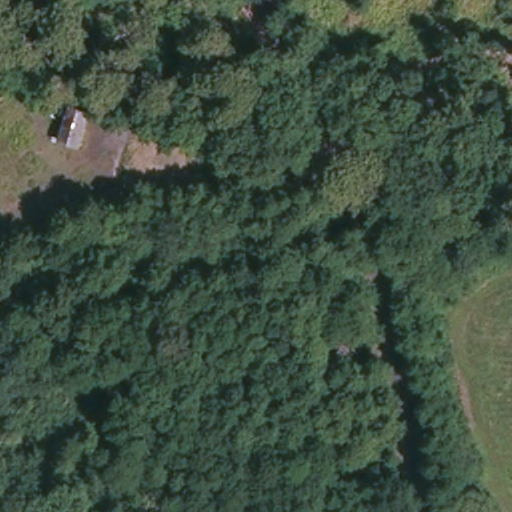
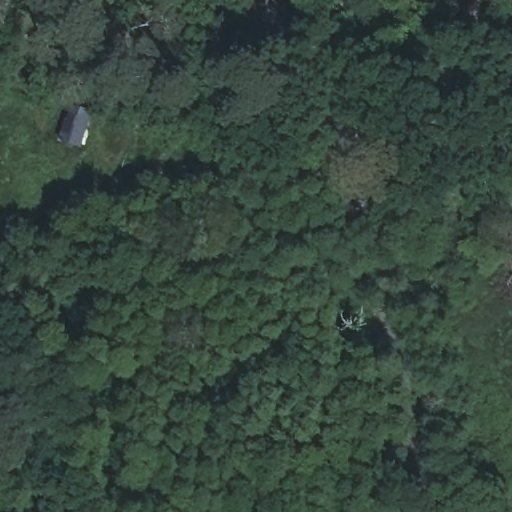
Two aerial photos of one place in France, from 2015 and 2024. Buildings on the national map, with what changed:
unchanged [(74,102),(95,108),(83,142),(63,135),(74,102)]

